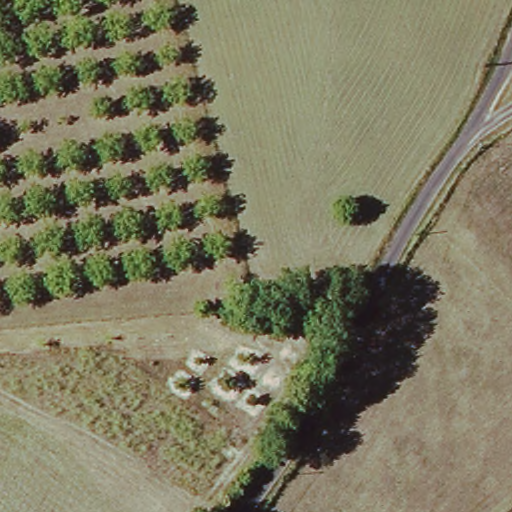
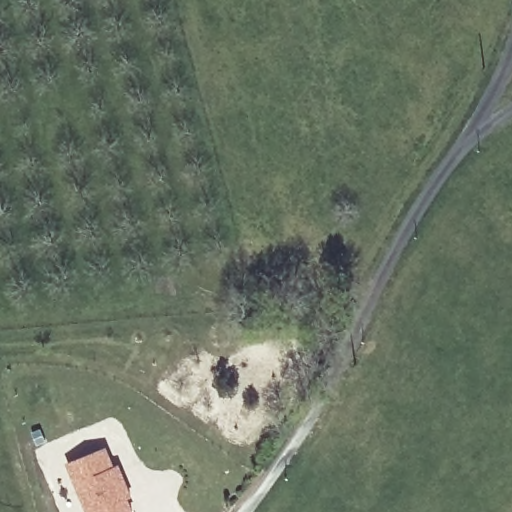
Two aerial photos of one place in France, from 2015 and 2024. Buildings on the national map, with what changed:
new [(114,468),(118,466),(123,479),(130,498),(126,499),(131,512),(87,512),(68,463),(105,448),(114,468)]

